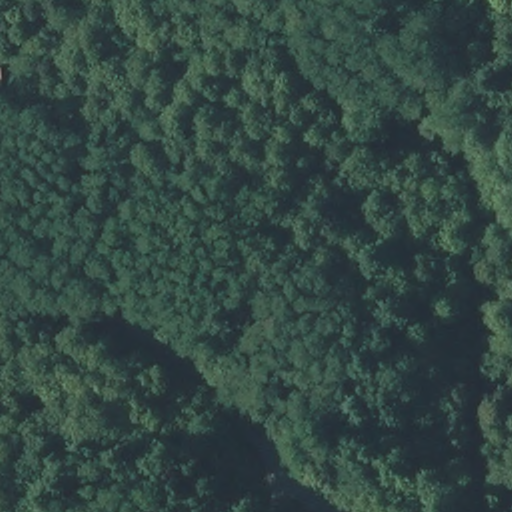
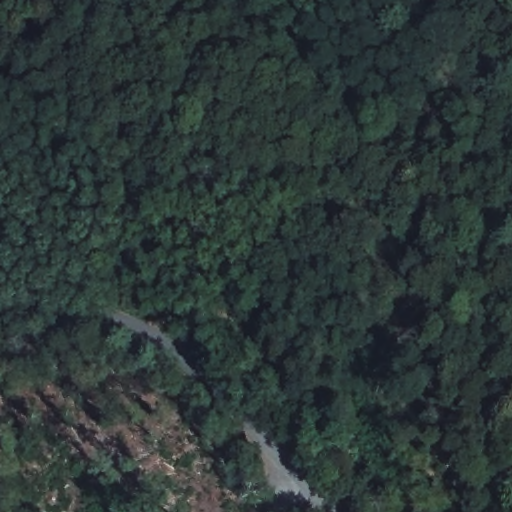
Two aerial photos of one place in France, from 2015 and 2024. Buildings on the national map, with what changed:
unchanged [(14,91),(0,94),(0,64),(9,63),(14,91)]

